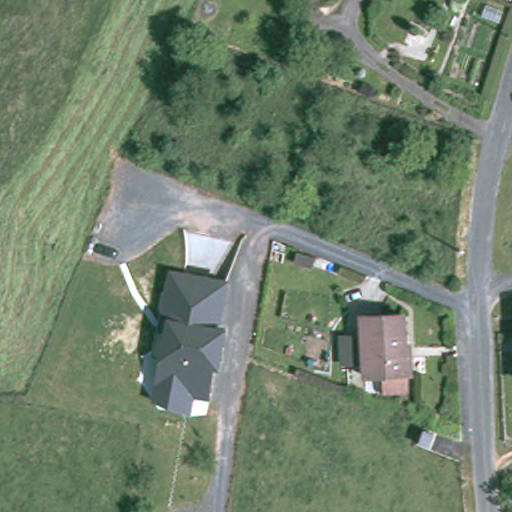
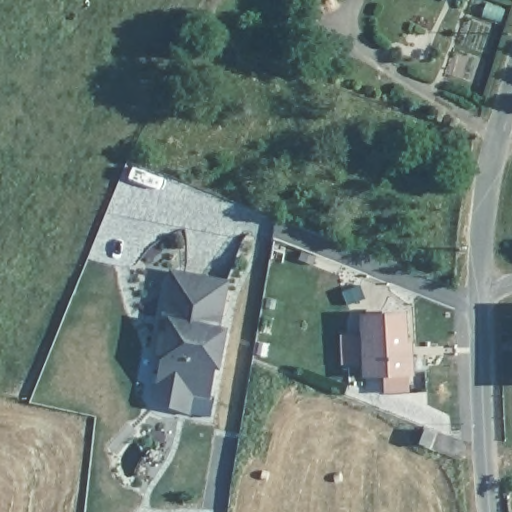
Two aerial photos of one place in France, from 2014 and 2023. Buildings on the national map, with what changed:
unchanged [(162,403),(158,398),(157,392),(158,386),(163,356),(158,355),(156,355),(163,320),(170,284),(172,282),(183,274),(227,282),(218,329),(226,330),(219,368),(215,367),(210,398),(193,398),(191,416),(162,403)]
unchanged [(411,355),(413,374),(367,376),(364,316),(405,314),(408,355),(411,355)]
unchanged [(435,434),(430,447),(421,443),(426,430),(435,434)]

